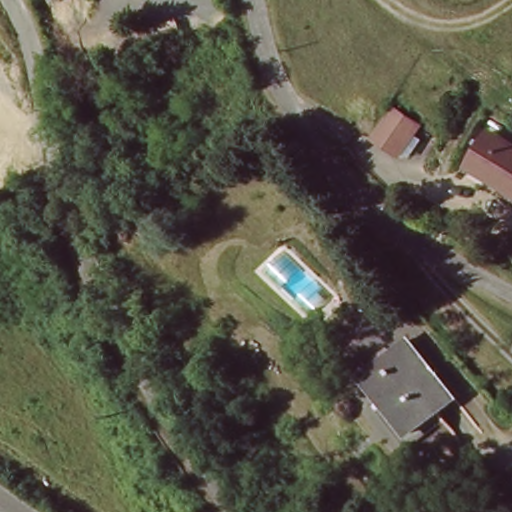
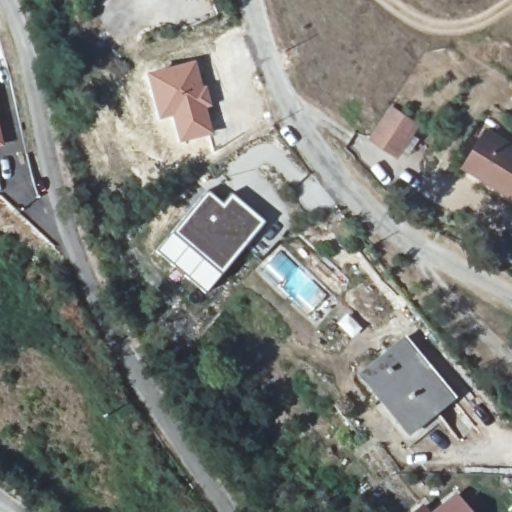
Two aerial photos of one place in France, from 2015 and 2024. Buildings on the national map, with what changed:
new [(140,31),(155,30),(155,23),(175,20),(180,37),(163,37),(159,44),(140,44),(140,31)]
new [(195,60),(212,106),(205,107),(212,135),(177,144),(170,118),(157,121),(144,74),(195,60)]
unchanged [(392,115),(419,129),(401,162),(375,147),(392,115)]
unchanged [(460,166),(482,127),(512,145),(512,195),(460,166)]
new [(0,147),(0,128),(4,146),(0,147)]
new [(210,190),(225,203),(234,192),(268,220),(210,293),(188,276),(203,258),(193,250),(178,268),(159,252),(210,190)]
unchanged [(445,387),(430,400),(440,414),(403,443),(366,398),(376,390),(357,367),(400,333),(445,387)]
new [(471,512),(431,512),(455,493),(471,512)]
new [(428,512),(414,512),(422,505),(428,512)]

